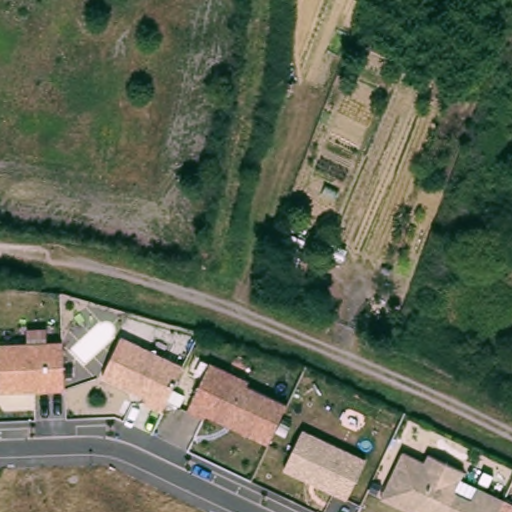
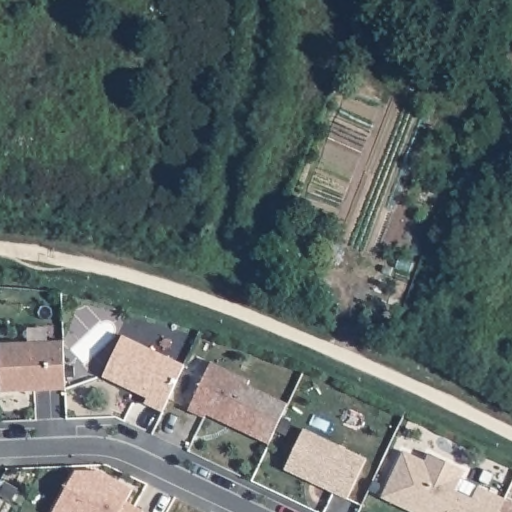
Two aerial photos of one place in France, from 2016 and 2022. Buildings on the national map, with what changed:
unchanged [(190,363),(164,415),(145,404),(149,395),(106,374),(127,334),(190,363)]
unchanged [(65,388),(0,390),(0,341),(65,340),(65,388)]
unchanged [(250,377),(248,382),(288,401),(269,443),(189,407),(212,360),(250,377)]
unchanged [(368,457),(348,500),(284,470),(305,427),(368,457)]
unchanged [(432,451),(468,470),(459,489),(475,497),(483,482),(509,497),(503,512),(417,512),(385,496),(407,450),(428,460),(432,451)]
new [(103,472),(134,490),(125,506),(136,512),(56,512),(78,472),(103,472)]

